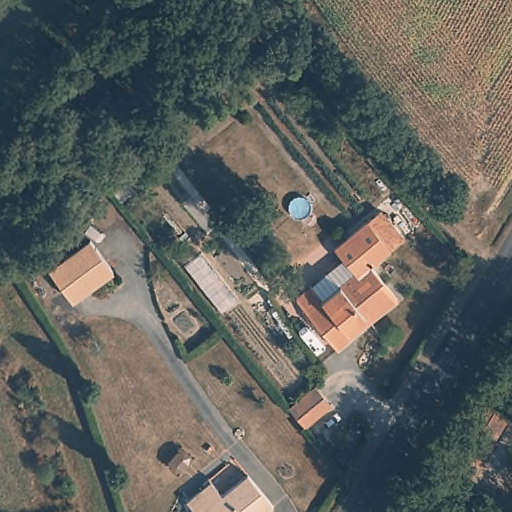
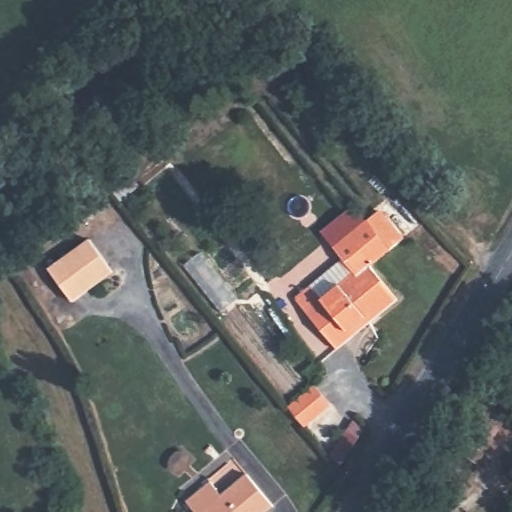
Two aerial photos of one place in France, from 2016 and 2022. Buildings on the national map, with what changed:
unchanged [(334,346),(295,299),(310,285),(309,284),(340,258),(332,247),(365,221),(386,247),(366,265),(393,297),(366,319),(345,336),(334,346)]
unchanged [(78,304),(54,273),(53,272),(93,241),(118,272),(78,304)]
unchanged [(292,405),(319,382),(334,401),(308,424),(292,405)]
unchanged [(452,444),(484,395),(511,415),(480,464),(452,444)]
unchanged [(193,512),(184,502),(208,482),(220,496),(246,474),(272,504),(263,512),(193,512)]

